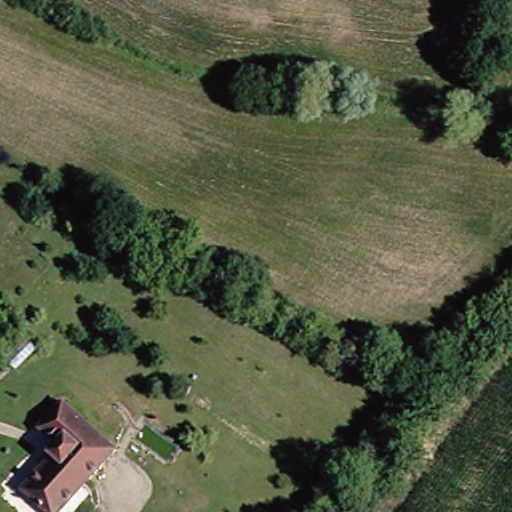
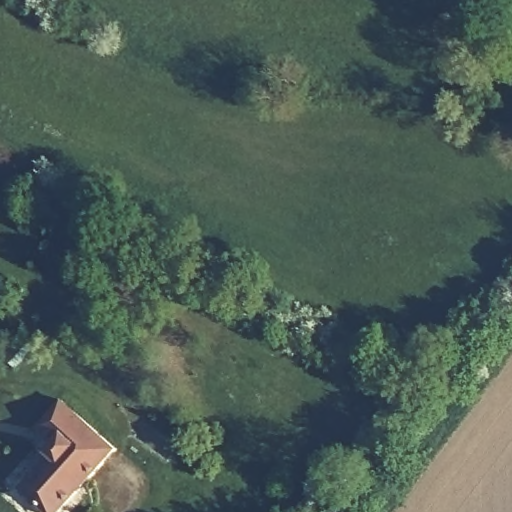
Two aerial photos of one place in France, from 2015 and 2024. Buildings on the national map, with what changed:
unchanged [(23,368),(11,359),(20,349),(27,342),(32,336),(43,346),(40,350),(34,357),(23,368)]
unchanged [(47,457),(44,455),(54,444),(36,427),(56,401),(77,417),(111,446),(57,512),(46,512),(27,495),(20,489),(36,470),(47,457)]

